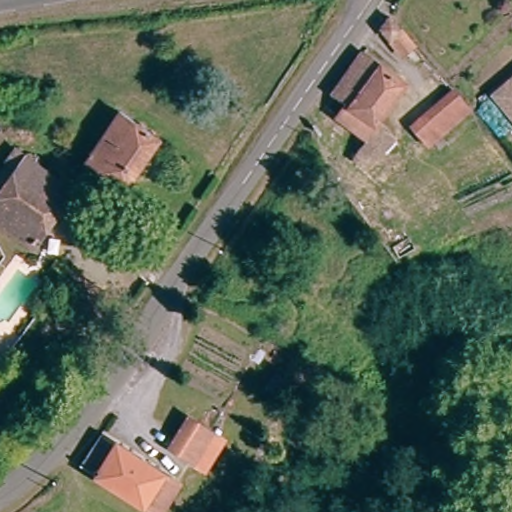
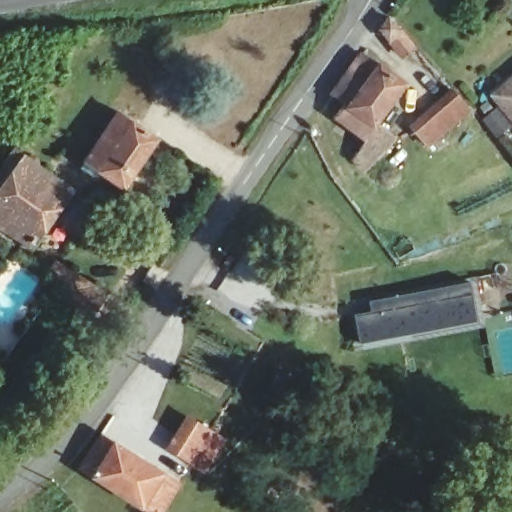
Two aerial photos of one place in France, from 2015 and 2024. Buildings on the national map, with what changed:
unchanged [(392,19),(411,41),(399,52),(382,32),(392,19)]
unchanged [(363,48),(411,91),(385,129),(391,135),(365,169),(351,156),(362,137),(335,117),(345,103),(331,89),(363,48)]
unchanged [(512,81),(512,132),(487,103),(512,81)]
unchanged [(436,113),(429,104),(445,87),(465,110),(470,117),(445,140),(426,121),(436,113)]
unchanged [(122,192),(85,166),(132,96),(150,110),(135,131),(156,145),(122,192)]
unchanged [(18,241),(0,230),(0,206),(20,176),(7,168),(15,154),(73,193),(34,250),(18,241)]
unchanged [(106,322),(75,300),(77,293),(49,274),(54,262),(128,306),(120,318),(106,322)]
new [(363,342),(358,315),(372,312),(370,300),(471,281),(478,321),(363,342)]
unchanged [(190,472),(168,457),(195,414),(217,427),(190,472)]
unchanged [(169,512),(160,512),(151,507),(85,469),(103,442),(168,480),(184,489),(169,512)]

